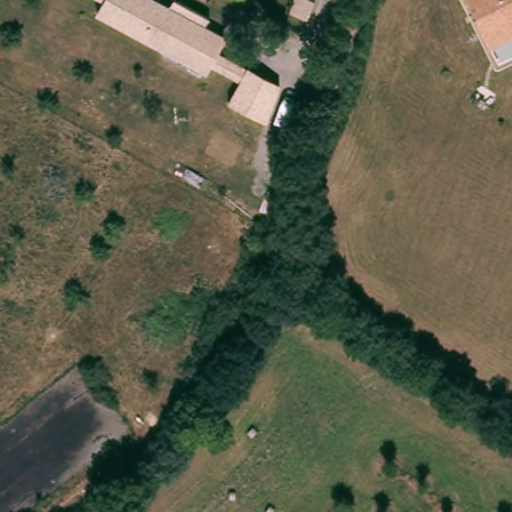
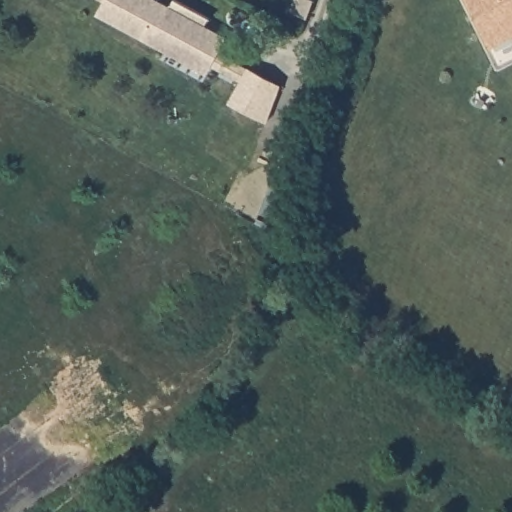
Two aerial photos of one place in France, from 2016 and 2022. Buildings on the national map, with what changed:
unchanged [(169,6),(173,0),(174,0),(210,19),(206,28),(225,38),(218,53),(247,68),(241,82),(210,67),(207,75),(94,15),(101,0),(158,0),(169,6)]
unchanged [(512,39),(490,50),(465,0),(512,0),(512,39)]
unchanged [(247,68),(280,84),(267,121),(232,107),(241,82),(247,68)]

